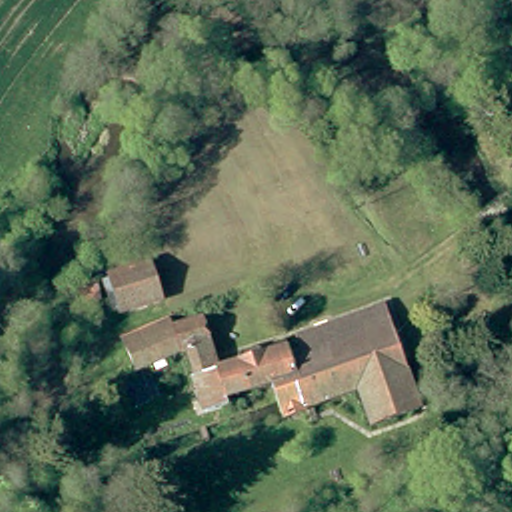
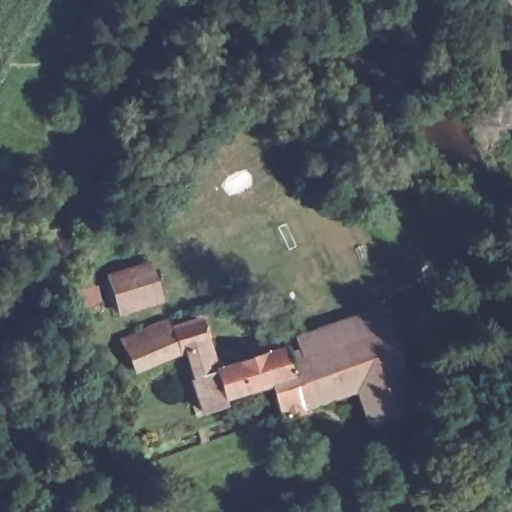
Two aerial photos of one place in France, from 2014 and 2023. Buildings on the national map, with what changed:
unchanged [(111,278),(150,266),(160,300),(122,309),(111,278)]
unchanged [(297,361),(309,358),(306,349),(311,337),(392,311),(410,366),(415,381),(426,413),(378,428),(366,392),(312,408),(297,361)]
unchanged [(290,417),(287,407),(285,402),(279,382),(233,396),(235,404),(210,413),(193,351),(170,360),(142,371),(133,351),(128,339),(174,320),(178,331),(208,318),(215,344),(214,344),(220,371),(246,363),(244,354),(266,347),(269,355),(293,347),(297,361),(312,408),(312,411),(290,417)]

